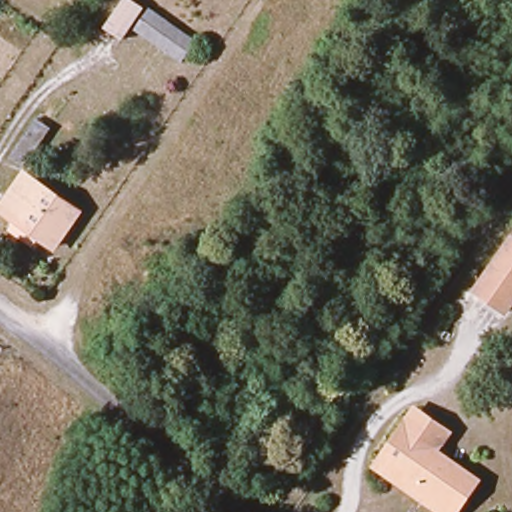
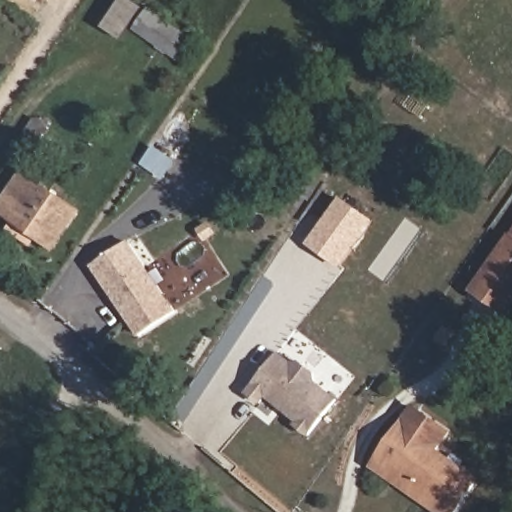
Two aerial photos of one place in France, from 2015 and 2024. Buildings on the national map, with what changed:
new [(42,0),(40,4),(35,0),(42,0)]
unchanged [(148,14),(197,48),(183,68),(134,35),(148,14)]
unchanged [(77,215),(51,250),(33,238),(26,248),(1,230),(9,220),(0,214),(0,210),(23,178),(77,215)]
new [(341,197),(374,221),(341,269),(306,244),(341,197)]
unchanged [(471,289),(512,228),(512,314),(510,316),(471,289)]
new [(128,321),(92,266),(130,240),(165,295),(128,321)]
new [(279,352),(291,362),(298,361),(316,375),(316,383),(338,401),(307,437),(292,424),(294,422),(265,399),(259,406),(244,393),(279,352)]
unchanged [(379,468),(417,413),(451,439),(436,458),(477,491),(462,512),(430,512),(424,508),(375,474),(379,468)]

